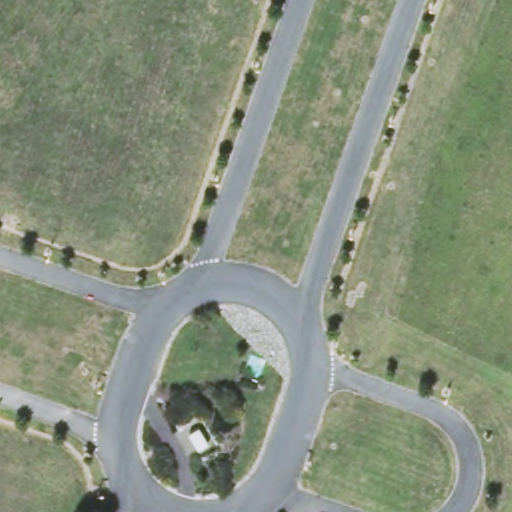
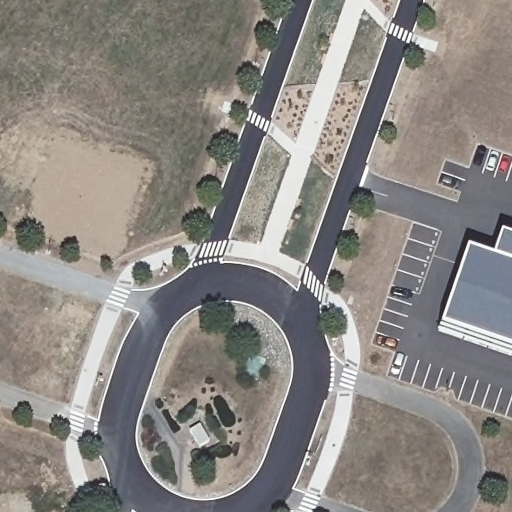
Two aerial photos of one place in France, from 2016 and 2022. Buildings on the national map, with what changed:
new [(434,341),(460,266),(484,275),(492,251),(512,258),(512,368),(434,341)]

